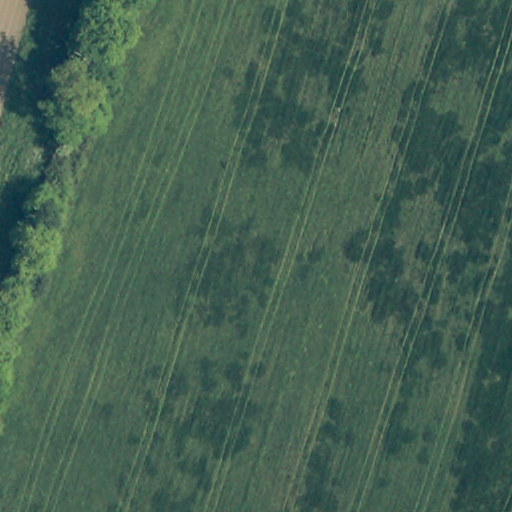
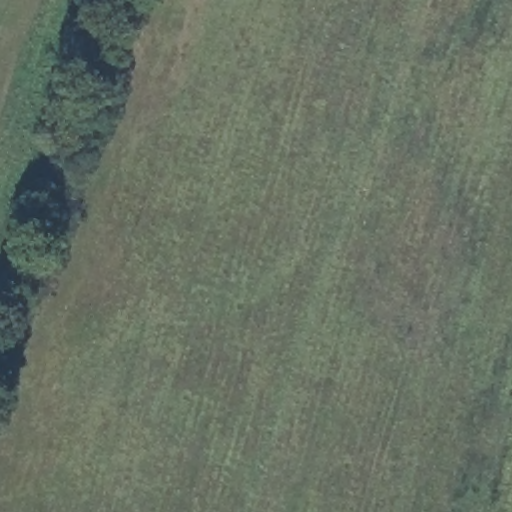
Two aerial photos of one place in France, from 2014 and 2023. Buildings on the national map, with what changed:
[]

